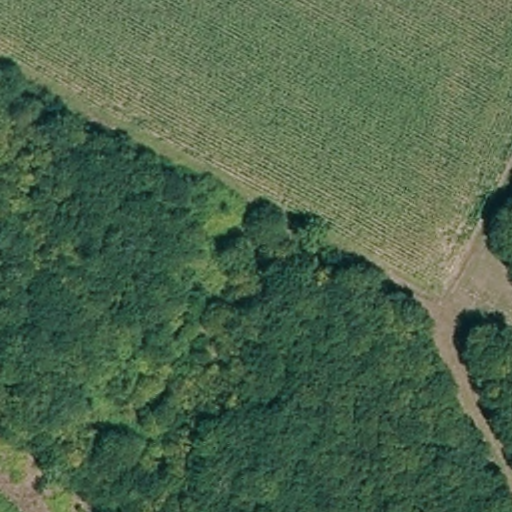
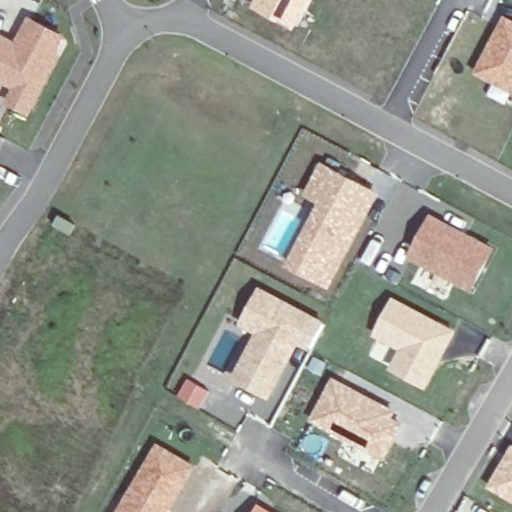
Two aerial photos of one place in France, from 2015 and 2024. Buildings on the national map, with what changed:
new [(311,0),(296,28),(251,6),(254,0),(311,0)]
new [(512,18),(512,96),(511,95),(506,104),(487,94),(492,84),(472,73),(504,14),(512,18)]
new [(15,39),(28,16),(68,35),(53,75),(30,118),(4,105),(11,89),(0,84),(0,32),(15,39)]
new [(317,204),(302,195),(321,161),(381,192),(330,289),(286,265),(317,204)]
new [(429,213),(495,247),(471,292),(406,258),(429,213)]
new [(255,334),(238,324),(259,285),(325,322),(309,351),(299,345),(270,401),(231,380),(255,334)]
new [(394,296),(458,330),(427,391),(388,370),(398,351),(373,337),(394,296)]
new [(332,376),(397,410),(396,412),(408,417),(386,462),(366,451),(371,441),(337,423),(331,432),(309,420),(332,376)]
new [(187,378),(209,390),(199,408),(177,396),(187,378)]
new [(156,442),(198,466),(171,512),(116,512),(156,442)]
new [(512,444),(512,502),(486,487),(511,443),(512,444)]
new [(258,503),(273,512),(253,512),(258,503)]

